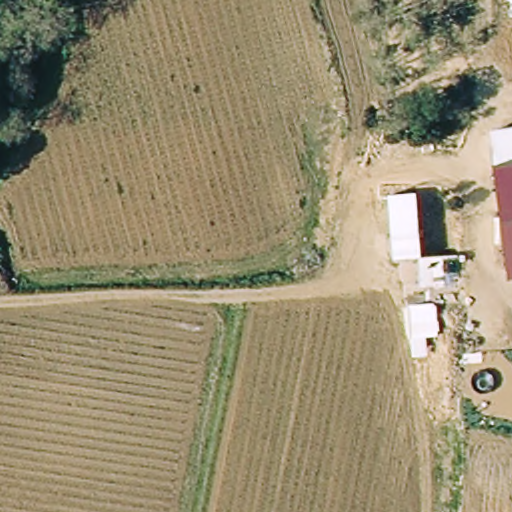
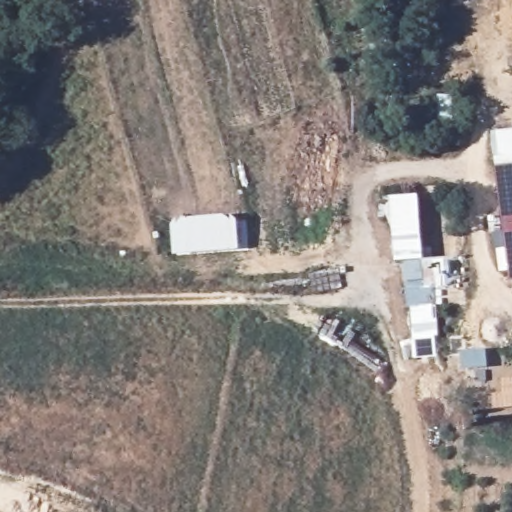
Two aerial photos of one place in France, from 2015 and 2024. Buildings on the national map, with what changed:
unchanged [(498,164),(496,136),(512,134),(512,163),(498,164)]
unchanged [(498,164),(512,163),(512,181),(499,182),(498,164)]
unchanged [(512,181),(512,263),(505,264),(499,182),(512,181)]
unchanged [(388,201),(415,199),(422,260),(394,262),(388,201)]
new [(236,220),(238,250),(172,256),(170,226),(236,220)]
unchanged [(512,263),(512,279),(507,279),(505,264),(512,263)]
unchanged [(426,360),(414,360),(412,342),(410,310),(436,309),(439,338),(427,339),(426,360)]

